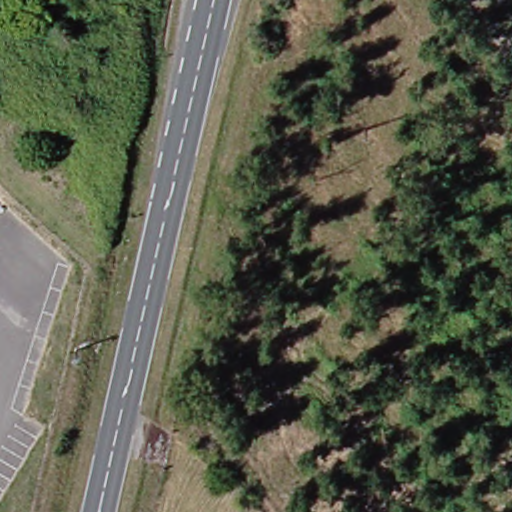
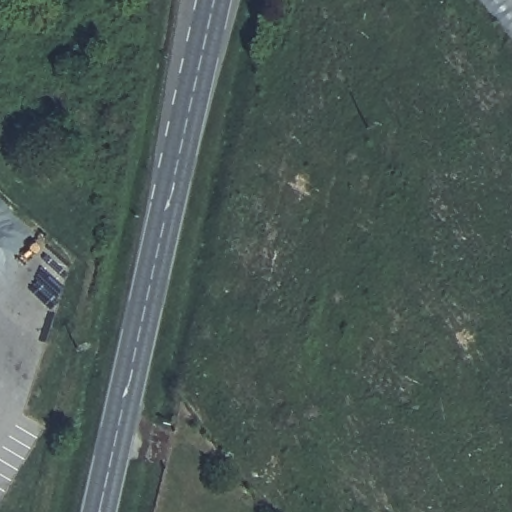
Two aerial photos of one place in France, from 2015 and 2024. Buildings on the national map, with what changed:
new [(475,0),(512,0),(512,46),(475,0)]

